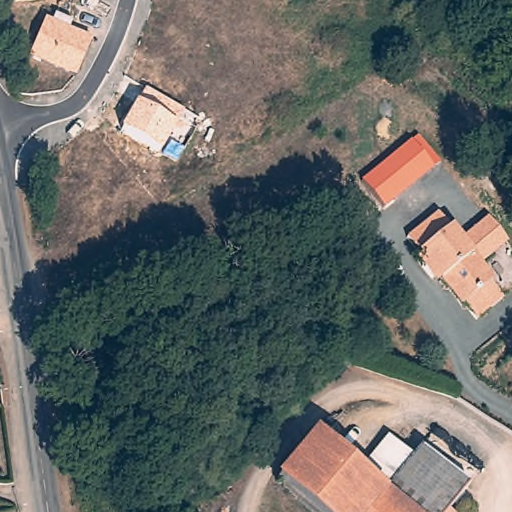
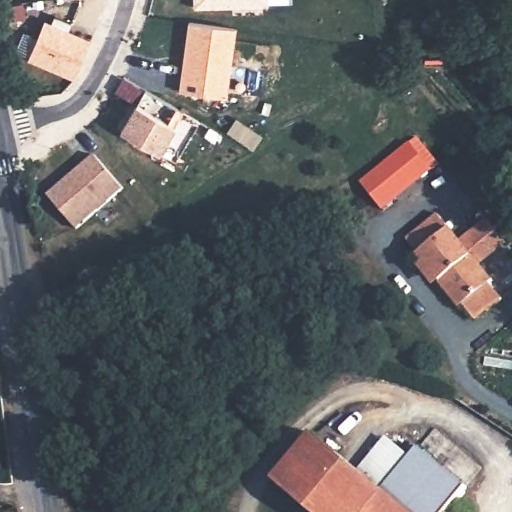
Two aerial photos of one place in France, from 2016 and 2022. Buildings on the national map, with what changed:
new [(267,0),(268,6),(194,8),(194,0),(267,0)]
unchanged [(75,79),(28,60),(44,18),(92,38),(75,79)]
new [(187,21),(236,27),(227,97),(178,89),(187,21)]
unchanged [(175,125),(160,152),(120,130),(134,103),(115,91),(123,77),(145,89),(183,109),(175,125)]
unchanged [(436,167),(382,210),(370,194),(361,182),(417,137),(438,165),(436,167)]
new [(48,195),(95,154),(125,188),(76,230),(48,195)]
unchanged [(465,301),(411,233),(442,208),(464,236),(480,223),(493,213),(511,236),(498,246),(482,258),(496,276),(494,277),(506,293),(480,315),(467,299),(465,301)]
unchanged [(275,481),(314,433),(359,471),(387,437),(393,442),(412,457),(415,453),(409,449),(414,442),(420,447),(468,487),(447,512),(311,512),(275,481)]

